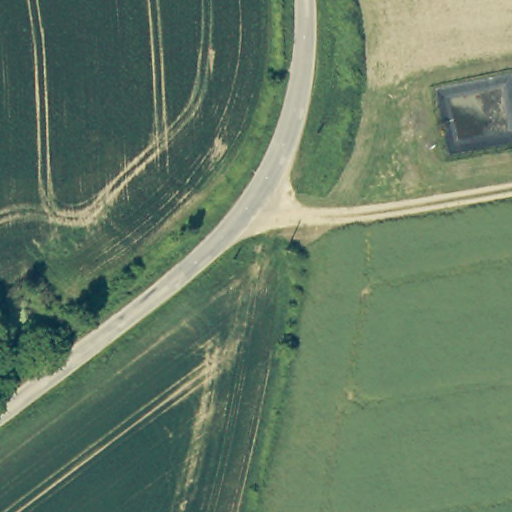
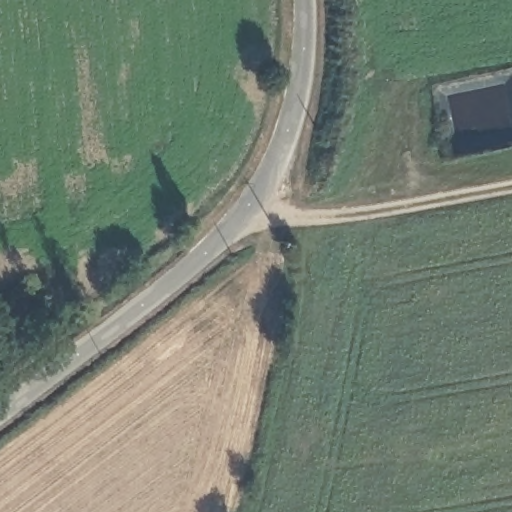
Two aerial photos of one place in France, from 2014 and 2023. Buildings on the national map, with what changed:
[]

